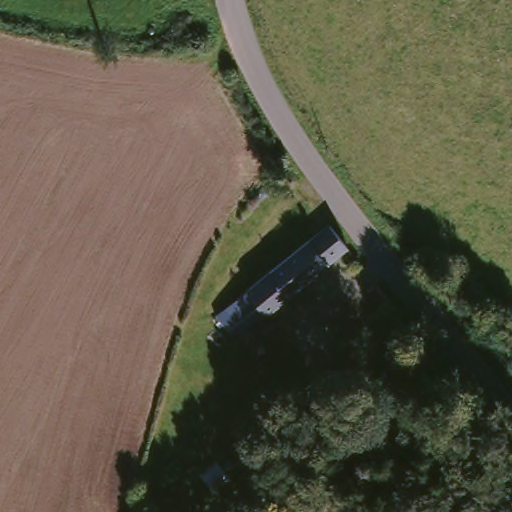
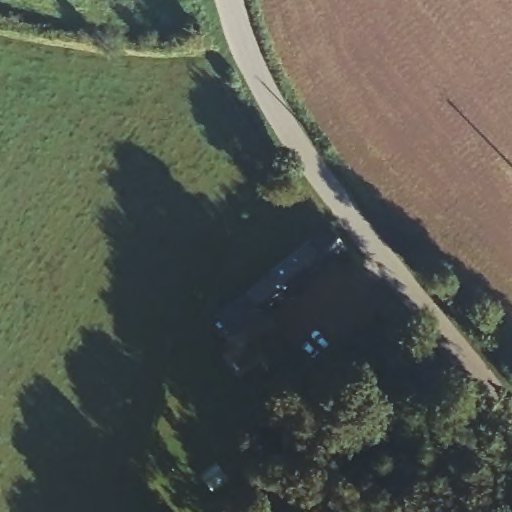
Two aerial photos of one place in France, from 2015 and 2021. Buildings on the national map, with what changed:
unchanged [(349,245),(260,323),(239,299),(247,291),(329,218),(349,245)]

